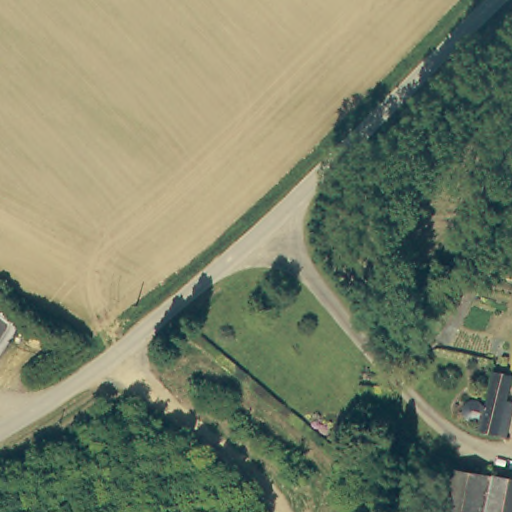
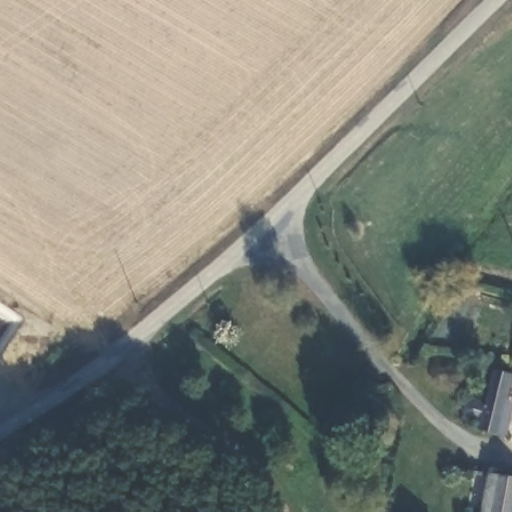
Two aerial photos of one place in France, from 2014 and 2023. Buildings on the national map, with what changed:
unchanged [(373,295),(361,304),(344,283),(356,275),(373,295)]
unchanged [(511,374),(506,401),(512,402),(506,436),(479,431),(481,420),(460,416),(467,402),(486,403),(492,372),(511,374)]
unchanged [(512,478),(512,512),(438,512),(447,465),(512,478)]

